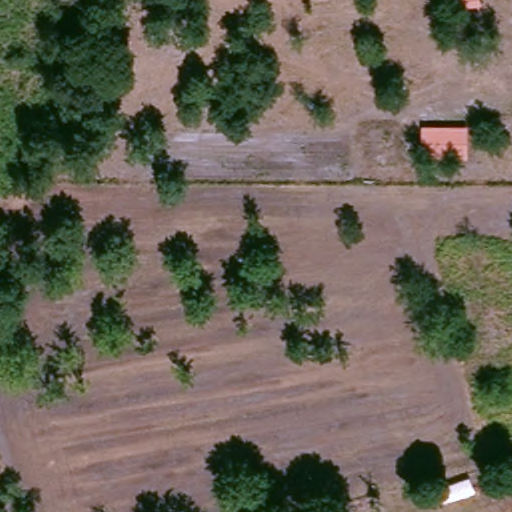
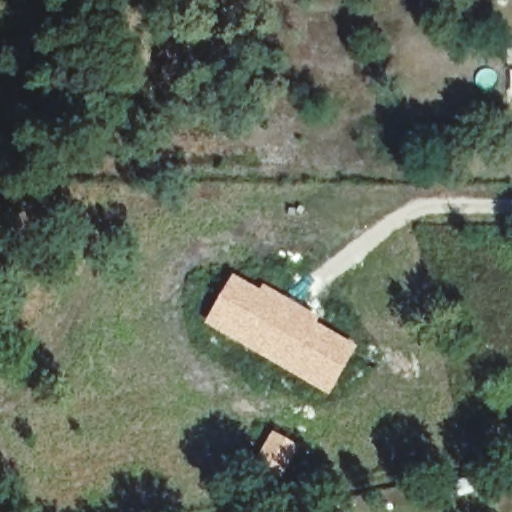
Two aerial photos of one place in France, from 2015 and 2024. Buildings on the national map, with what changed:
unchanged [(422,158),(422,126),(468,127),(468,160),(422,158)]
new [(232,274),(259,288),(262,284),(319,318),(317,322),(357,345),(328,396),(204,322),(232,274)]
new [(272,431),(298,446),(280,479),(253,463),(272,431)]

